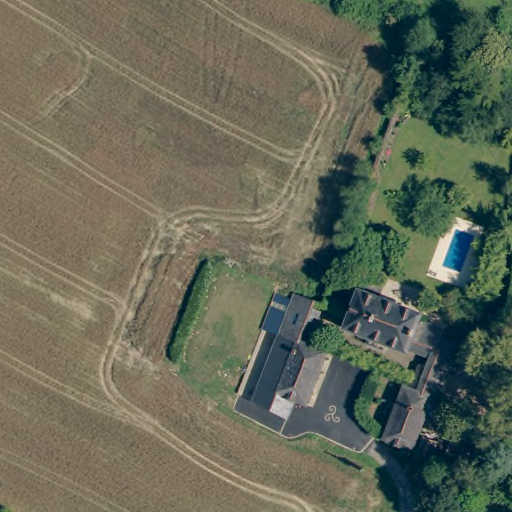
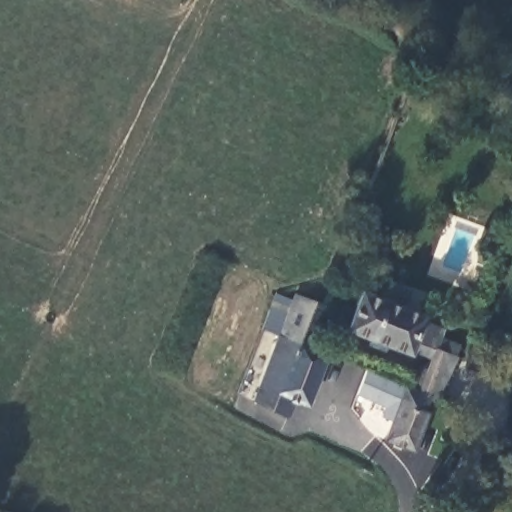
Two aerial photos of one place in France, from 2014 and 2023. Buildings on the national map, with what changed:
unchanged [(295,291),(315,298),(300,336),(326,349),(306,400),(295,395),(287,415),(251,400),(258,381),(278,332),(295,291)]
unchanged [(432,372),(410,361),(406,365),(346,339),(350,328),(360,303),(412,326),(421,331),(420,336),(445,347),(439,362),(438,364),(448,371),(431,412),(422,409),(415,405),(432,372)]
unchanged [(417,423),(424,427),(408,463),(382,449),(402,400),(415,405),(422,409),(417,423)]
unchanged [(421,453),(433,458),(427,471),(416,466),(421,453)]

